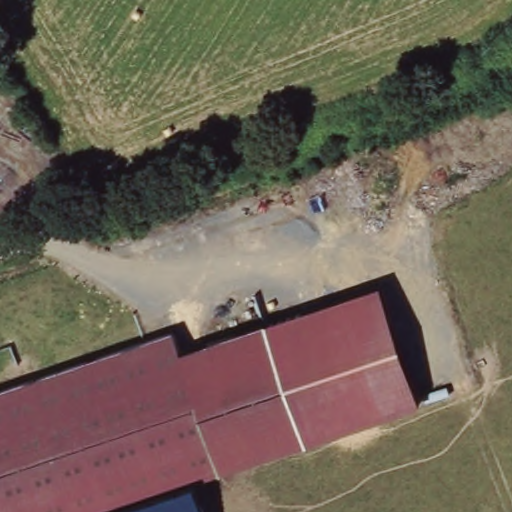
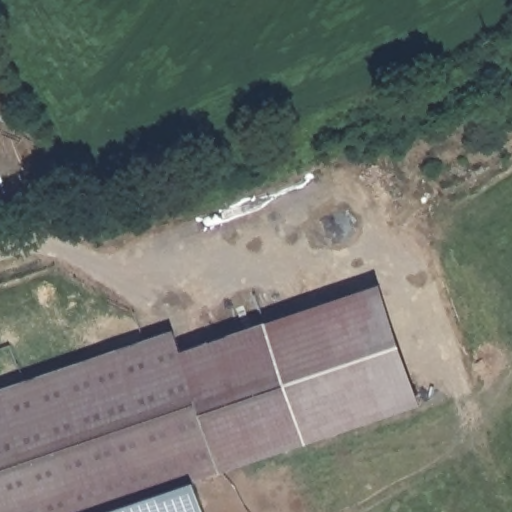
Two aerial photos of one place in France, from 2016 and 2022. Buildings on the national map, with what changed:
unchanged [(268,324),(382,282),(422,404),(306,439),(268,324)]
unchanged [(178,353),(268,324),(306,439),(98,512),(0,512),(0,387),(171,329),(178,353)]
unchanged [(204,512),(98,512),(193,479),(204,512)]

